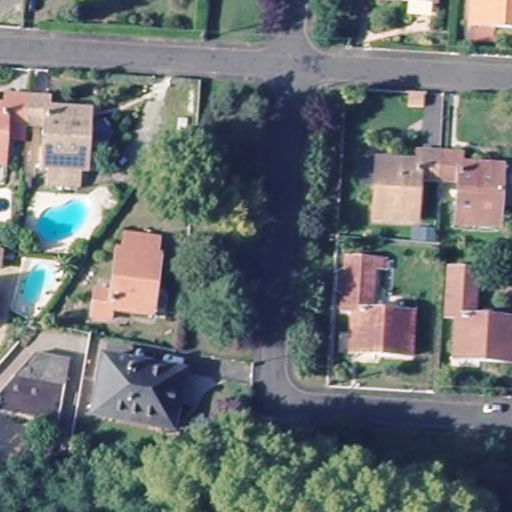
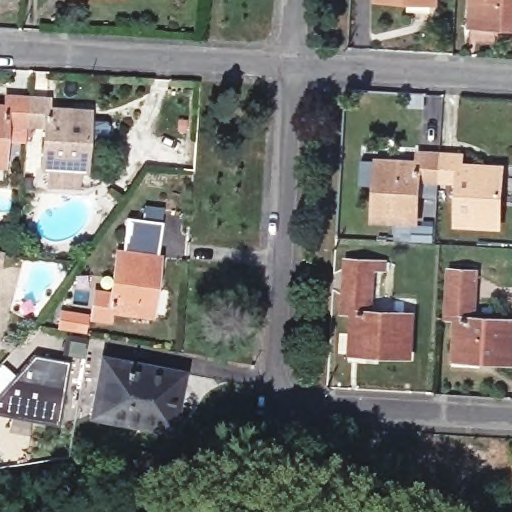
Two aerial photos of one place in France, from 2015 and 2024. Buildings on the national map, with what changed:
unchanged [(110,0),(126,0),(125,2),(110,0)]
unchanged [(381,4),(381,0),(438,0),(437,7),(381,4)]
unchanged [(512,0),(512,29),(475,26),(477,0),(512,0)]
unchanged [(10,101),(32,103),(31,132),(30,132),(29,146),(7,145),(5,172),(0,171),(0,110),(9,111),(10,101)]
unchanged [(32,103),(52,104),(51,114),(92,117),(89,178),(83,178),(82,192),(54,189),(54,176),(48,175),(50,134),(31,132),(32,103)]
unchanged [(420,187),(418,227),(377,225),(380,172),(381,165),(396,166),(421,167),(422,157),(444,159),(442,189),(420,187)]
unchanged [(463,170),(490,172),(505,172),(504,179),(500,232),(460,229),(462,190),(442,189),(444,159),(464,160),(463,170)]
unchanged [(140,315),(115,311),(112,321),(95,318),(100,292),(114,293),(120,254),(126,254),(129,237),(160,241),(159,257),(161,258),(155,309),(154,317),(140,315)]
unchanged [(0,268),(0,249),(2,249),(0,268)]
unchanged [(355,339),(357,312),(347,311),(350,260),(391,262),(390,272),(380,272),(378,313),(415,316),(412,358),(362,354),(354,353),(355,339)]
unchanged [(459,345),(461,317),(451,316),(454,271),(483,272),(480,318),(512,321),(512,363),(465,360),(457,360),(459,345)]
unchanged [(175,431),(161,428),(161,430),(93,416),(103,360),(180,374),(176,396),(182,397),(175,431)]
unchanged [(75,368),(64,431),(0,419),(0,405),(39,361),(75,368)]

